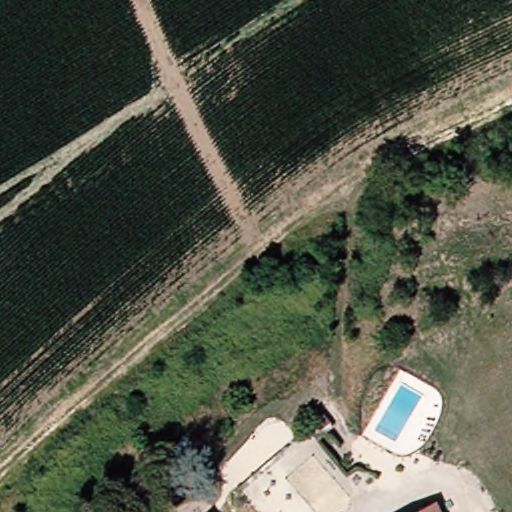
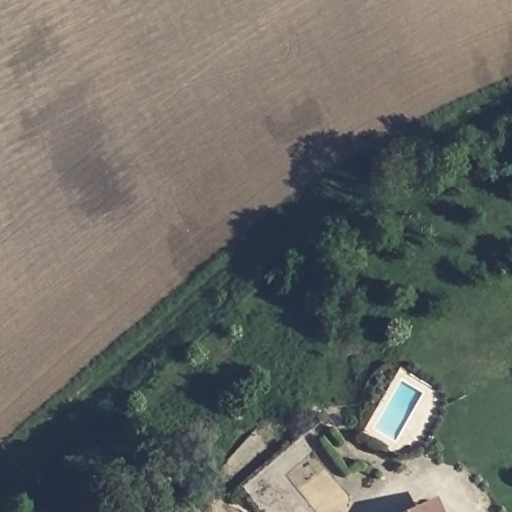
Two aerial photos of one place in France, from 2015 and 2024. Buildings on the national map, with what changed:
unchanged [(418,512),(445,500),(450,512),(418,512)]

